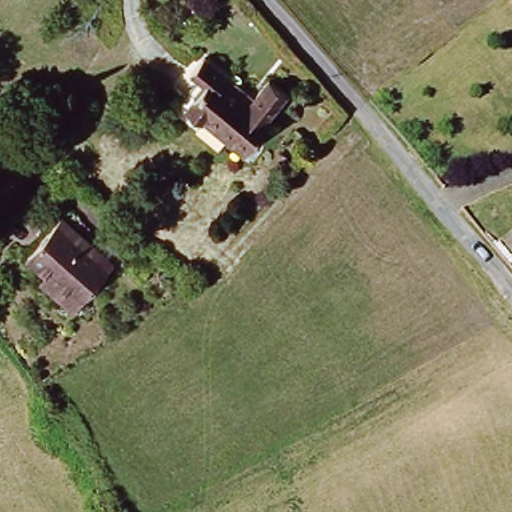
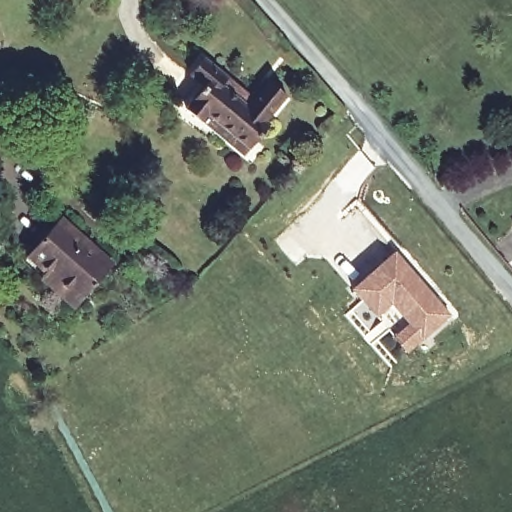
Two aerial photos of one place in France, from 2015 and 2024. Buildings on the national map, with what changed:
unchanged [(273,121),(280,130),(257,157),(219,123),(214,129),(198,114),(214,94),(198,78),(213,62),(231,77),(226,84),(253,102),(273,80),(292,97),(273,121)]
unchanged [(83,305),(31,264),(69,217),(120,258),(83,305)]
new [(395,251),(449,316),(407,352),(393,336),(407,323),(392,304),(376,316),(353,289),(395,251)]

